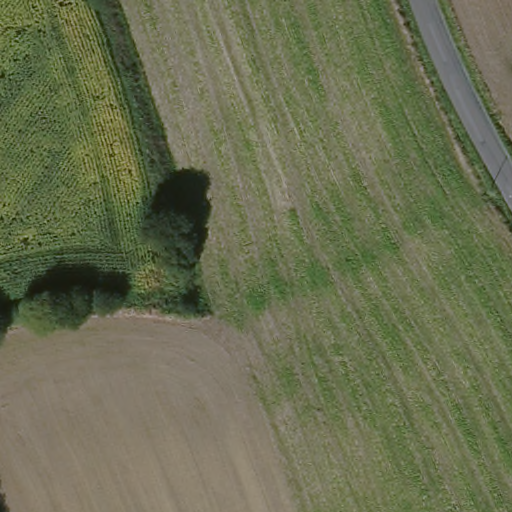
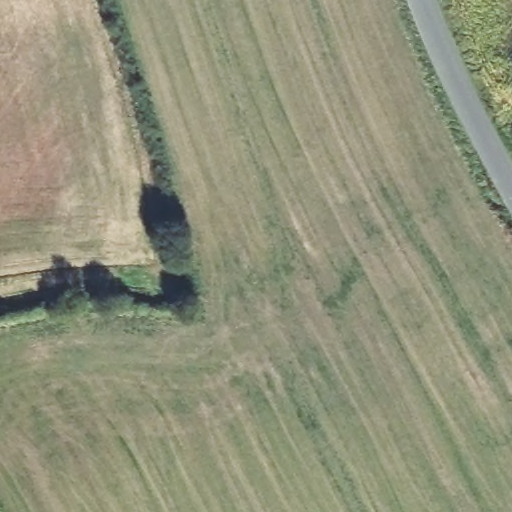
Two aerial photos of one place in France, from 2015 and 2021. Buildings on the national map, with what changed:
[]

